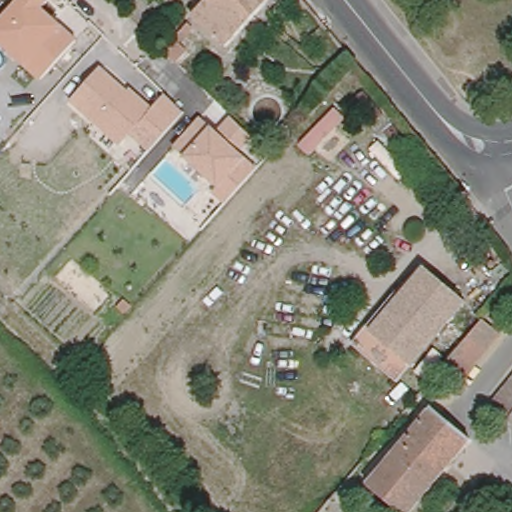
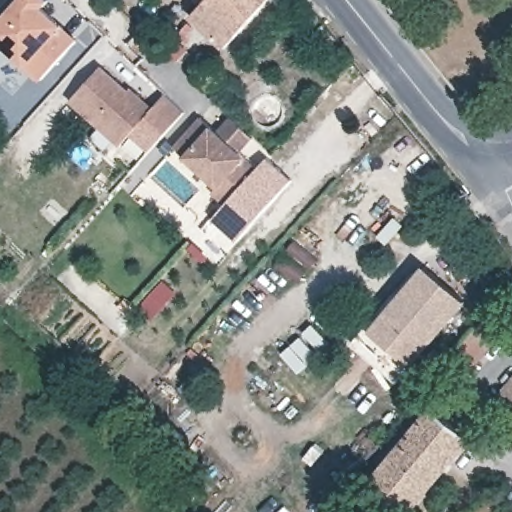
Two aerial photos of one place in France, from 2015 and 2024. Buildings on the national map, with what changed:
unchanged [(52,0),(44,9),(77,39),(40,80),(0,43),(0,19),(17,0),(52,0)]
unchanged [(193,22),(212,1),(213,0),(274,0),(226,53),(193,22)]
unchanged [(210,0),(213,0),(212,1),(210,0)]
unchanged [(184,27),(191,34),(184,41),(183,41),(181,43),(189,50),(177,62),(163,50),(173,39),(184,27)]
unchanged [(101,67),(128,92),(132,89),(151,108),(167,95),(185,112),(146,150),(130,135),(120,145),(69,101),(101,67)]
unchanged [(319,108),(312,116),(308,112),(315,104),(319,108)]
unchanged [(201,117),(211,126),(217,131),(231,117),(252,137),(237,152),(246,160),(255,170),(222,204),(210,194),(216,188),(184,156),(174,146),(201,117)]
new [(266,157),(291,179),(236,240),(211,217),(222,204),(255,170),(266,157)]
unchanged [(412,371),(411,370),(398,386),(353,349),(366,332),(414,276),(418,280),(424,272),(466,306),(412,371)]
unchanged [(460,380),(443,366),(483,319),(500,334),(460,380)]
unchanged [(491,405),(512,379),(512,414),(508,419),(491,405)]
unchanged [(512,414),(512,422),(508,419),(512,414)]
unchanged [(469,448),(415,512),(395,512),(367,489),(429,415),(469,448)]
unchanged [(339,502),(335,507),(326,505),(334,495),(339,502)]

